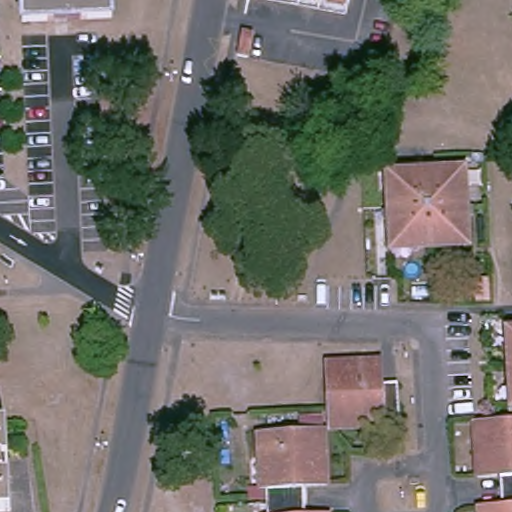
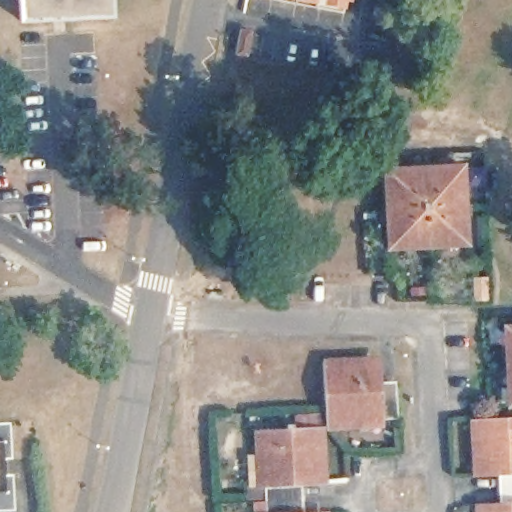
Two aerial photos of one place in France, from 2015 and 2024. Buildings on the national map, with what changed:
unchanged [(119,11),(25,14),(25,0),(118,0),(119,11)]
unchanged [(352,4),(332,0),(353,0),(352,4)]
unchanged [(254,17),(249,42),(237,39),(242,15),(254,17)]
unchanged [(467,242),(426,244),(390,245),(387,207),(385,172),(423,170),(463,169),(465,205),(467,242)]
unchanged [(330,356),(385,353),(388,418),(333,422),(330,356)]
unchanged [(503,485),(502,470),(479,472),(476,415),(512,414),(512,485),(503,485)]
unchanged [(14,452),(5,452),(5,470),(12,472),(14,505),(0,505),(0,418),(12,418),(14,452)]
unchanged [(331,507),(331,512),(264,512),(263,510),(271,510),(270,496),(270,483),(262,482),(261,426),(326,423),(330,477),(307,479),(308,495),(309,507),(331,507)]
unchanged [(503,485),(512,485),(512,512),(482,512),(481,499),(504,498),(503,485)]

